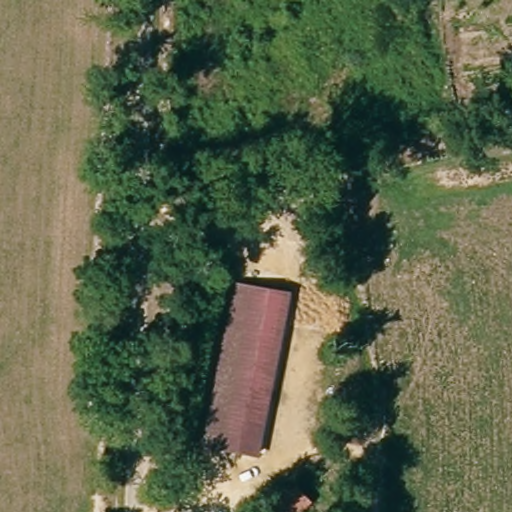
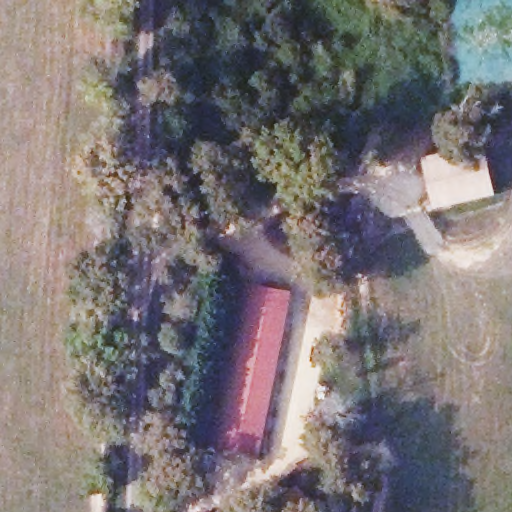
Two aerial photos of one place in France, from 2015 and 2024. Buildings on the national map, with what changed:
new [(421,157),(483,144),(496,195),(433,210),(421,157)]
unchanged [(249,285),(287,292),(257,451),(217,443),(249,285)]

